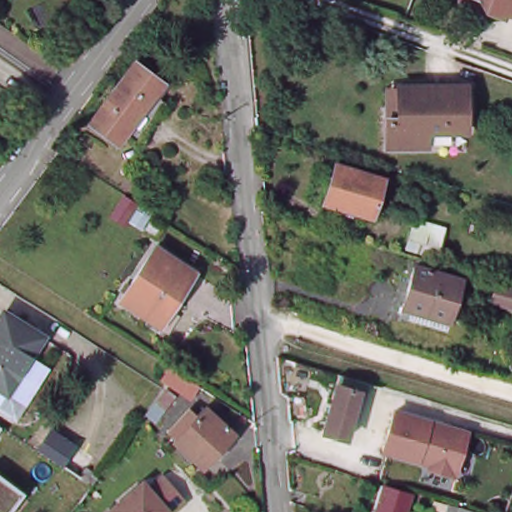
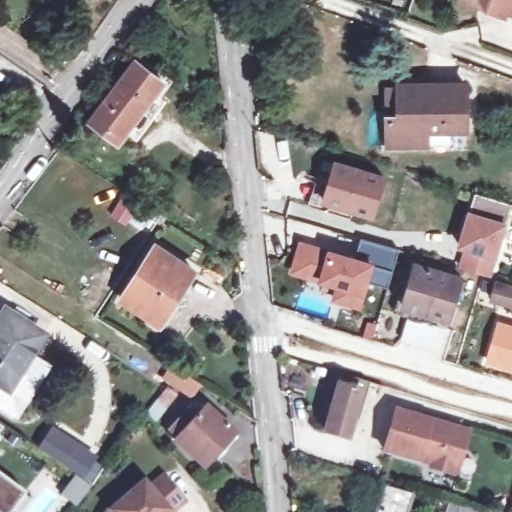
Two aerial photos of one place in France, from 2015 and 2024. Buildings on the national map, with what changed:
unchanged [(507,19),(488,11),(460,0),(512,0),(512,15),(508,14),(507,19)]
unchanged [(138,138),(127,130),(119,141),(92,120),(137,61),(165,81),(156,92),(167,101),(138,138)]
unchanged [(468,131),(428,131),(429,146),(387,146),(387,117),(387,87),(399,87),(468,86),(468,131)]
unchanged [(323,208),(325,201),(337,163),(385,178),(374,217),(365,214),(363,221),(323,208)]
new [(476,194),(512,204),(490,276),(462,268),(467,248),(460,245),(476,194)]
demolished [(437,254),(410,246),(415,230),(442,238),(437,254)]
new [(327,247),(351,255),(358,237),(398,248),(387,286),(368,280),(363,295),(359,310),(327,299),(329,287),(317,282),(288,273),(297,240),(327,247)]
unchanged [(122,298),(157,244),(195,269),(160,323),(122,298)]
unchanged [(405,306),(416,265),(462,279),(447,328),(432,324),(433,320),(417,315),(403,312),(405,306)]
unchanged [(512,306),(492,299),(497,281),(512,286),(512,306)]
unchanged [(5,310),(43,334),(8,390),(0,385),(0,318),(5,310)]
new [(500,323),(512,327),(512,366),(490,359),(500,323)]
unchanged [(165,379),(173,367),(200,384),(193,396),(165,379)]
unchanged [(323,432),(338,385),(360,392),(357,404),(347,439),(323,432)]
unchanged [(148,413),(168,388),(177,394),(157,419),(148,413)]
unchanged [(204,420),(213,410),(240,436),(210,471),(182,444),(184,442),(177,436),(197,414),(204,420)]
unchanged [(462,431),(462,432),(467,434),(462,452),(461,453),(455,475),(430,468),(432,464),(383,451),(396,411),(462,431)]
unchanged [(3,426),(0,430),(0,424),(3,426)]
unchanged [(51,429),(80,448),(65,469),(37,452),(51,429)]
unchanged [(100,475),(94,483),(82,474),(87,467),(100,475)]
unchanged [(25,494),(12,512),(0,512),(0,475),(25,494)]
new [(75,475),(92,487),(75,509),(58,498),(75,475)]
unchanged [(144,491),(150,498),(164,486),(185,509),(182,512),(119,512),(144,491)]
unchanged [(385,486),(412,494),(407,512),(377,512),(385,486)]
unchanged [(448,504),(460,508),(473,512),(446,512),(448,504)]

